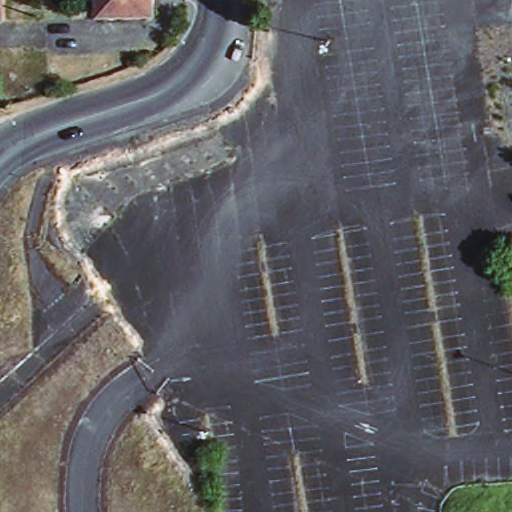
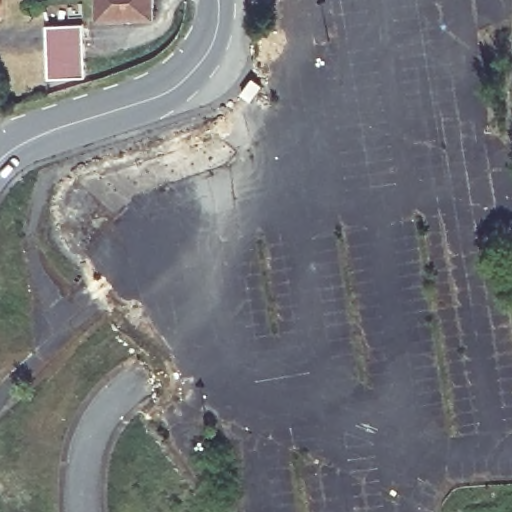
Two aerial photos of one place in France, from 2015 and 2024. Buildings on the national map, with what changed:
unchanged [(96,19),(96,0),(150,0),(151,17),(96,19)]
new [(81,25),(84,78),(46,79),(44,27),(81,25)]

